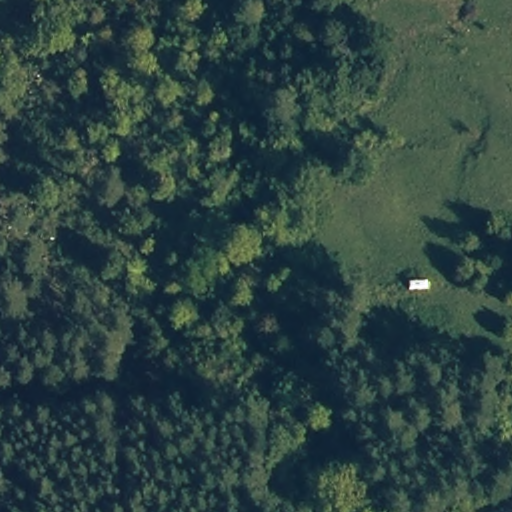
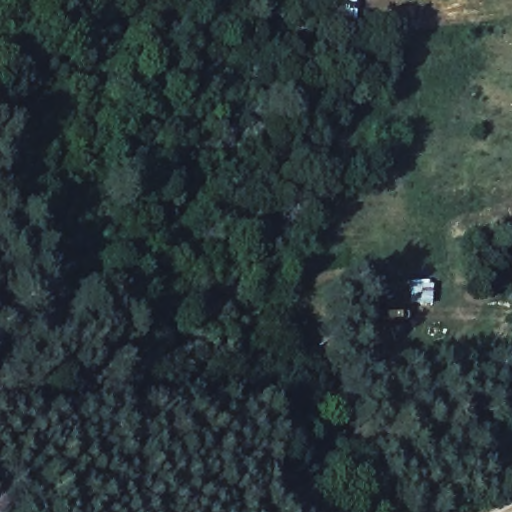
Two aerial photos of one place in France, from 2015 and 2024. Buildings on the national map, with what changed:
unchanged [(330,300),(331,336),(307,337),(306,314),(300,314),(302,294),(311,294),(310,301),(330,300)]

